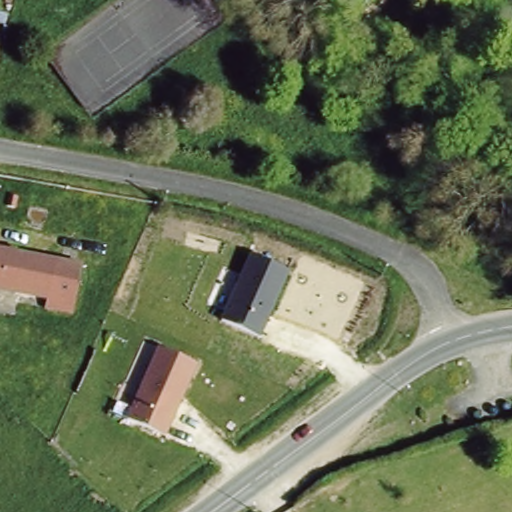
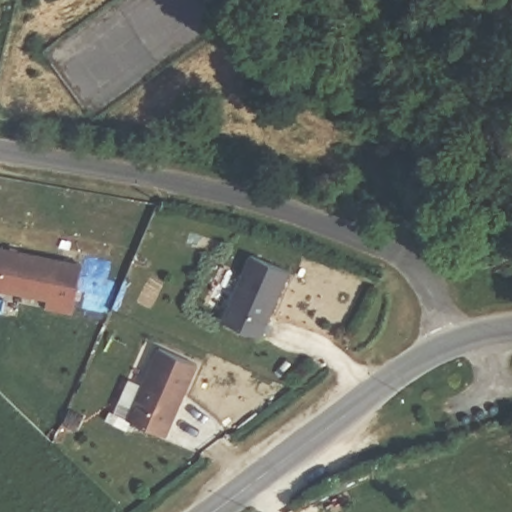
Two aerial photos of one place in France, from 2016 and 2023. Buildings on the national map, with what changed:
unchanged [(78,317),(45,310),(46,302),(0,292),(0,250),(89,269),(78,317)]
unchanged [(246,254),(286,272),(258,336),(220,320),(246,254)]
unchanged [(155,346),(195,364),(165,435),(126,417),(155,346)]

